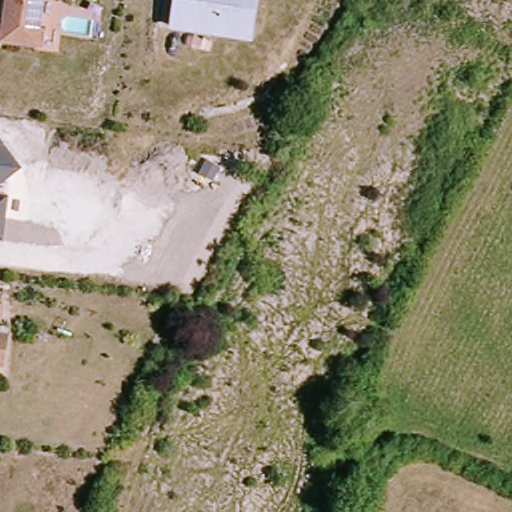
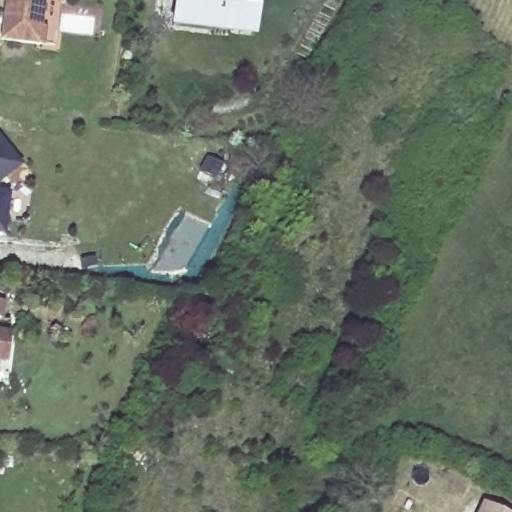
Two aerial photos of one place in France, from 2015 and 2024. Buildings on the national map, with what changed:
unchanged [(47,29),(45,46),(3,40),(7,10),(9,0),(46,0),(42,28),(47,29)]
unchanged [(169,25),(173,0),(215,0),(210,31),(169,25)]
unchanged [(210,31),(215,0),(222,0),(237,2),(239,0),(254,0),(249,36),(210,31)]
unchanged [(222,0),(239,0),(237,2),(222,0)]
unchanged [(22,168),(0,185),(0,138),(22,168)]
unchanged [(8,194),(3,238),(0,238),(0,192),(8,194)]
unchanged [(8,321),(2,364),(0,363),(0,320),(8,321)]
new [(485,500),(511,512),(480,512),(485,500)]

